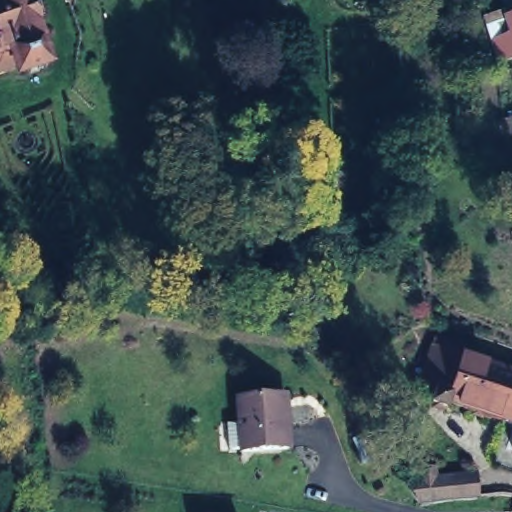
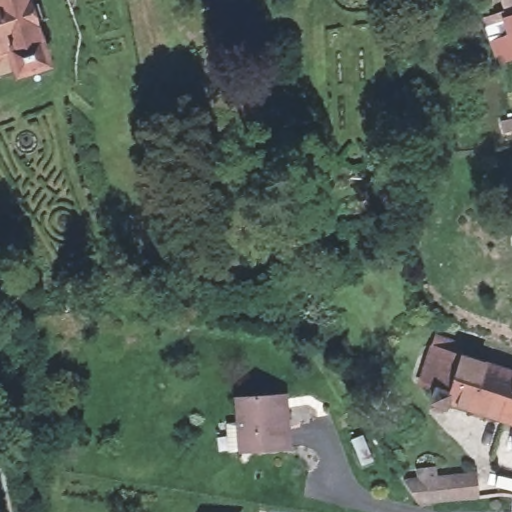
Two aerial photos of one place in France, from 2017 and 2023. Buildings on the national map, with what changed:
unchanged [(58,58),(40,65),(38,62),(10,72),(5,55),(9,54),(5,43),(0,45),(0,0),(45,0),(58,58)]
unchanged [(510,31),(501,8),(506,7),(504,0),(512,0),(512,55),(500,57),(492,36),(510,31)]
unchanged [(438,397),(442,386),(426,381),(438,341),(441,332),(470,342),(467,351),(512,366),(512,417),(452,396),(450,402),(438,397)]
unchanged [(281,392),(282,403),(287,403),(290,444),(241,448),(237,396),(281,392)]
unchanged [(364,433),(373,458),(362,462),(352,437),(364,433)]
unchanged [(421,471),(420,461),(436,459),(438,470),(477,467),(480,492),(449,495),(421,501),(403,473),(421,471)]

